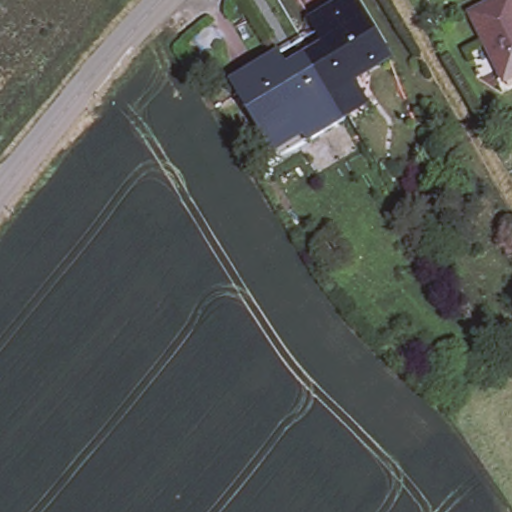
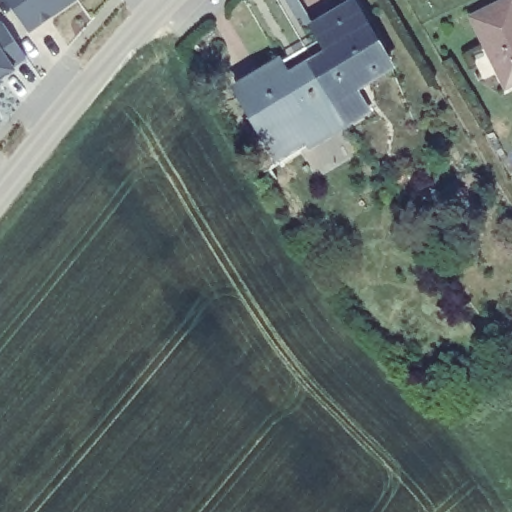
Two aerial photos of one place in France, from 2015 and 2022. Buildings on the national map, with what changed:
new [(11,0),(80,0),(55,17),(46,23),(32,32),(11,0)]
unchanged [(288,67),(320,50),(307,24),(343,0),(357,0),(395,67),(360,89),(367,112),(305,150),(292,131),(263,146),(226,83),(279,54),(288,67)]
unchanged [(512,83),(508,85),(473,20),(511,1),(512,3),(512,83)]
new [(7,25),(30,58),(18,66),(20,69),(13,73),(14,75),(5,80),(6,81),(0,86),(0,29),(7,25)]

